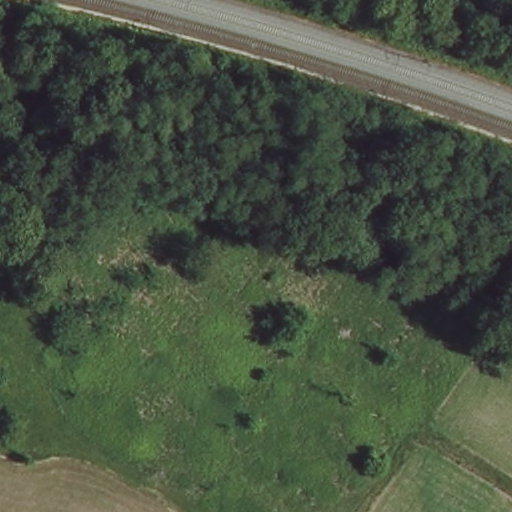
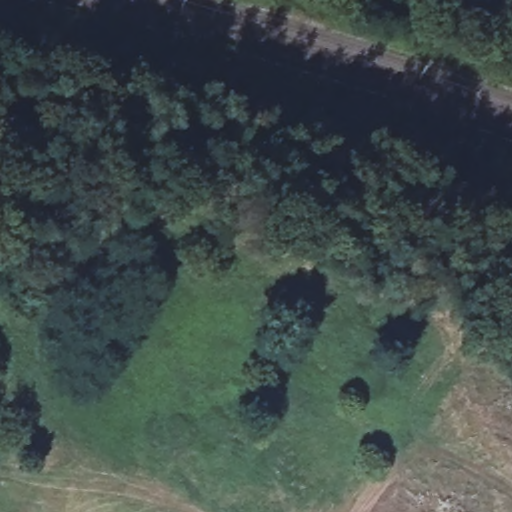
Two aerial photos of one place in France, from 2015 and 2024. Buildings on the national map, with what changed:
unchanged [(11,9),(14,0),(31,0),(29,12),(11,9)]

